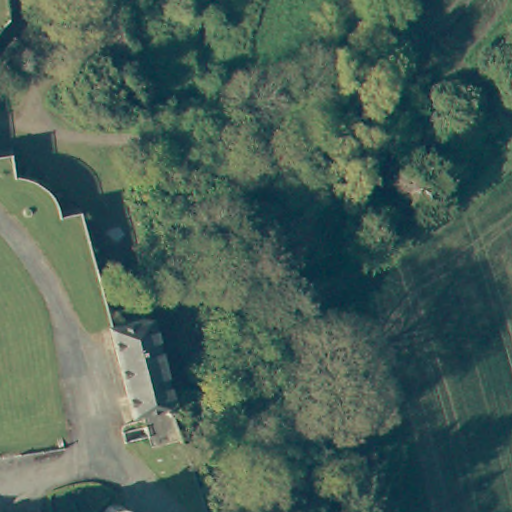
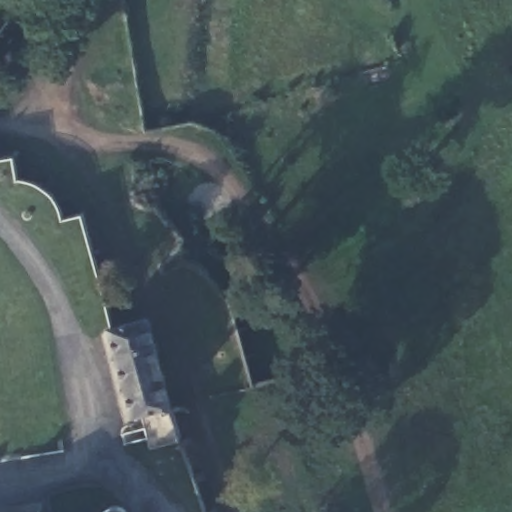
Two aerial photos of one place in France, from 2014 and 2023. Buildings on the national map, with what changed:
unchanged [(150,317),(172,408),(135,417),(113,325),(150,317)]

